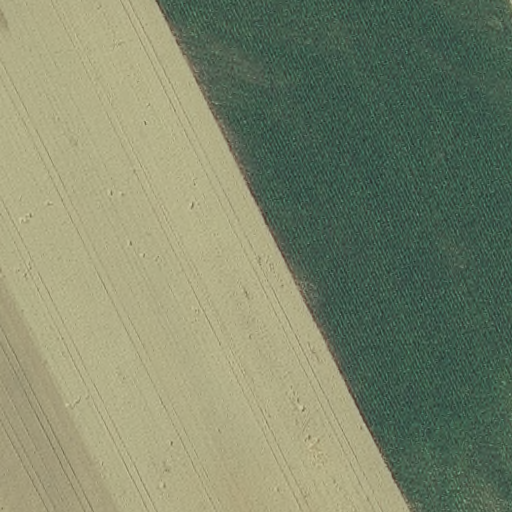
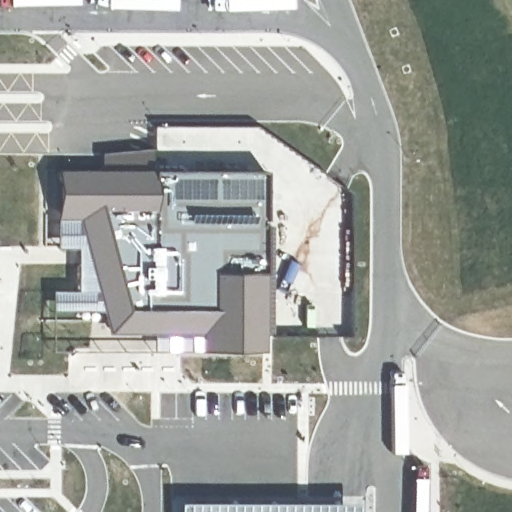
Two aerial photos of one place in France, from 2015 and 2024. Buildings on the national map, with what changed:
new [(265,174),(263,351),(205,353),(204,330),(112,328),(92,250),(45,247),(46,170),(265,174)]
new [(420,476),(419,512),(409,512),(409,476),(420,476)]
new [(351,512),(176,512),(175,501),(350,502),(351,512)]

